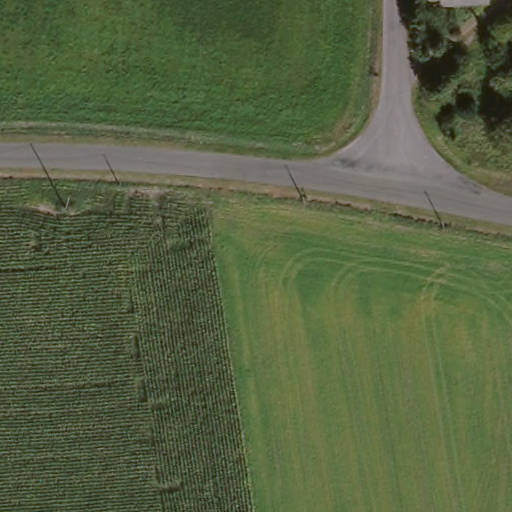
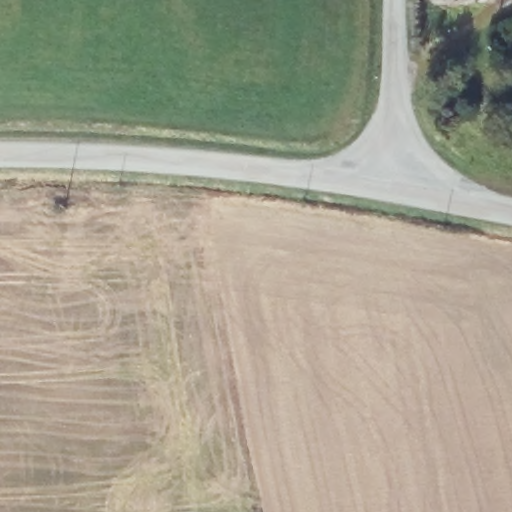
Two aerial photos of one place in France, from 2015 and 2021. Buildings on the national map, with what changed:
unchanged [(505,4),(479,5),(433,6),(433,0),(505,0),(505,4)]

